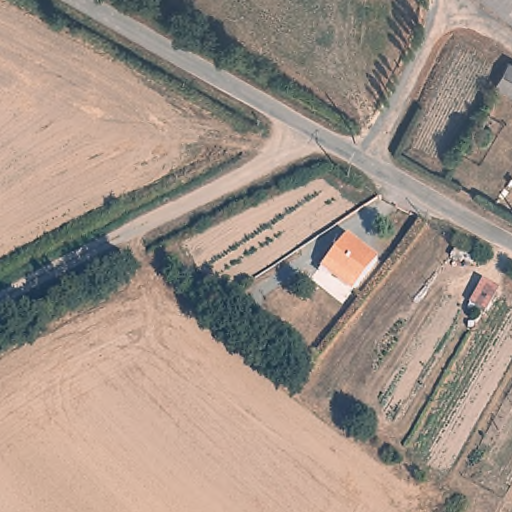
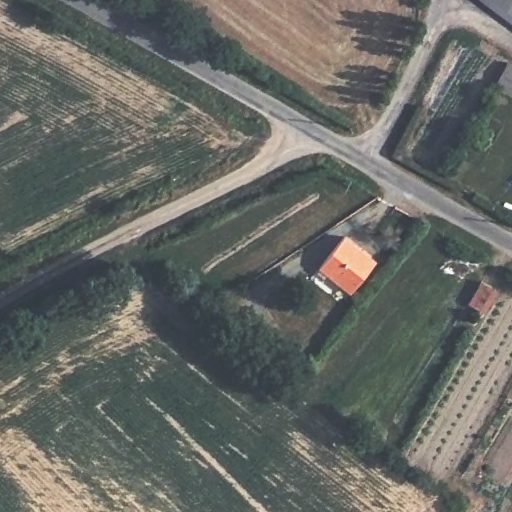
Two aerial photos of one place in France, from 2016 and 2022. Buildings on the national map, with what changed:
unchanged [(512,0),(512,32),(470,0),(512,0)]
unchanged [(501,76),(506,67),(512,70),(512,94),(496,85),(501,76)]
unchanged [(372,266),(349,297),(318,274),(342,244),(372,266)]

